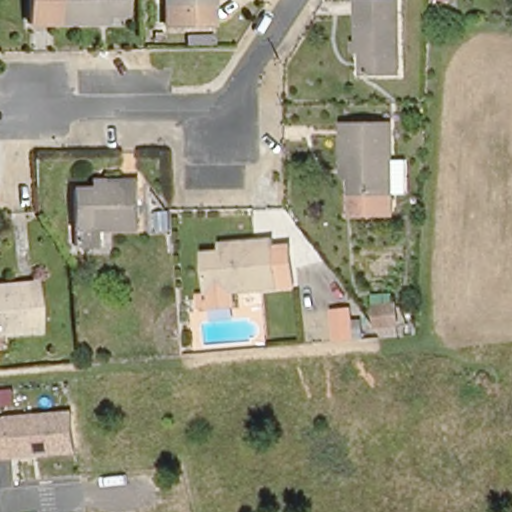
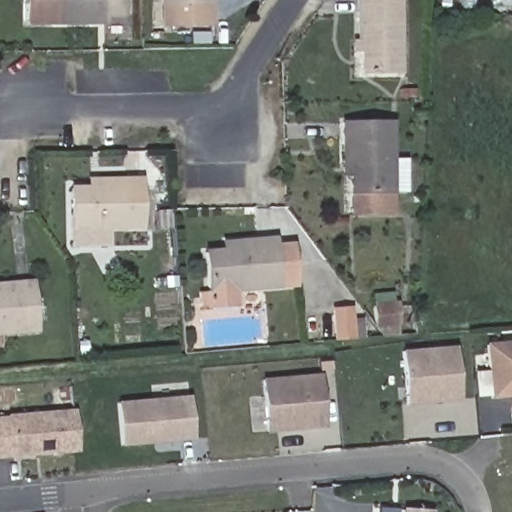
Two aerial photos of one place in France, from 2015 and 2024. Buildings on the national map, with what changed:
unchanged [(96,15),(95,23),(25,20),(26,0),(122,0),(122,16),(96,15)]
unchanged [(211,0),(209,26),(162,25),(163,0),(211,0)]
unchanged [(357,42),(358,0),(401,0),(400,74),(367,73),(367,42),(357,42)]
unchanged [(403,188),(390,188),(390,208),(351,209),(351,163),(342,163),(343,121),(390,121),(390,161),(405,161),(403,188)]
unchanged [(71,235),(72,222),(75,183),(101,185),(102,177),(146,181),(142,228),(107,225),(106,238),(71,235)]
unchanged [(195,304),(195,291),(196,249),(221,249),(222,242),(265,242),(265,249),(280,249),(281,292),(221,291),(221,304),(195,304)]
unchanged [(30,283),(35,332),(0,335),(0,285),(30,283)]
unchanged [(374,325),(375,302),(402,302),(398,324),(374,325)]
unchanged [(357,332),(331,332),(331,316),(357,316),(357,332)]
new [(512,397),(490,399),(485,343),(512,341),(512,397)]
new [(455,346),(458,401),(405,405),(401,350),(455,346)]
new [(321,374),(326,428),(266,433),(261,378),(321,374)]
new [(189,396),(193,441),(122,448),(117,403),(189,396)]
unchanged [(75,410),(79,452),(0,459),(0,416),(75,410)]
new [(402,509),(432,511),(432,512),(402,512),(402,509)]

